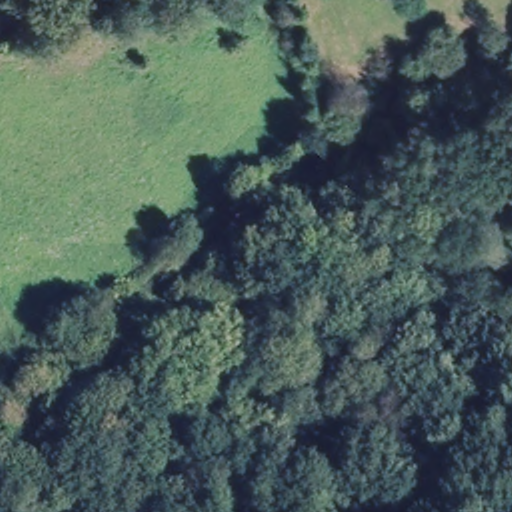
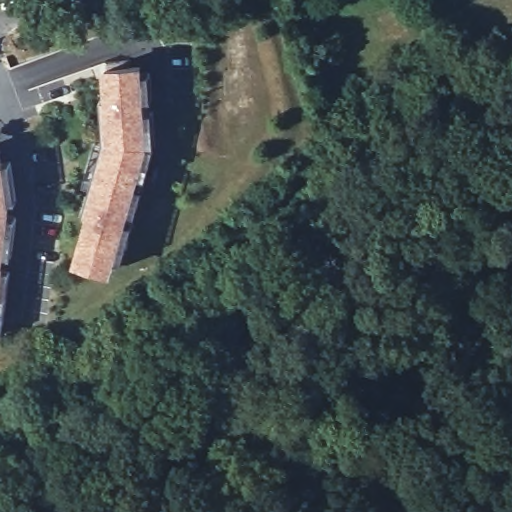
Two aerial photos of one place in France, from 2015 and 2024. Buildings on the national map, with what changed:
new [(72,264),(86,215),(82,214),(103,141),(100,100),(104,99),(101,66),(143,64),(148,148),(110,276),(72,264)]
new [(1,148),(10,211),(3,271),(0,296),(0,148),(1,148)]

